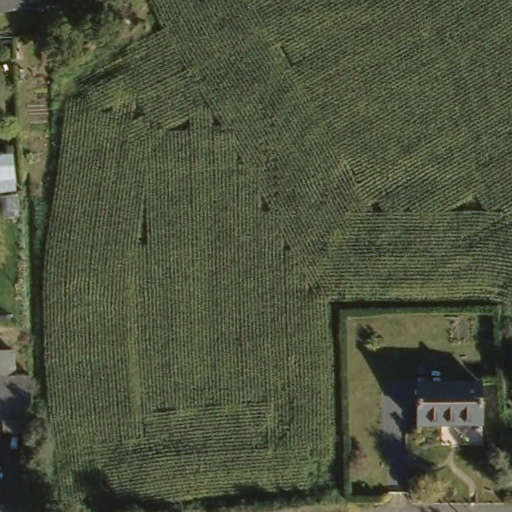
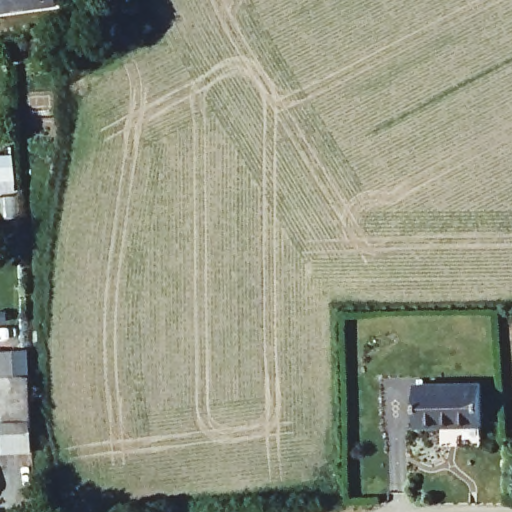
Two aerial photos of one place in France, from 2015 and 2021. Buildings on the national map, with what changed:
unchanged [(70,7),(0,18),(0,0),(68,0),(70,7)]
unchanged [(25,345),(23,371),(9,370),(0,370),(0,343),(25,345)]
unchanged [(9,424),(9,370),(23,371),(40,371),(40,424),(9,424)]
unchanged [(429,426),(427,380),(493,377),(495,421),(429,426)]

